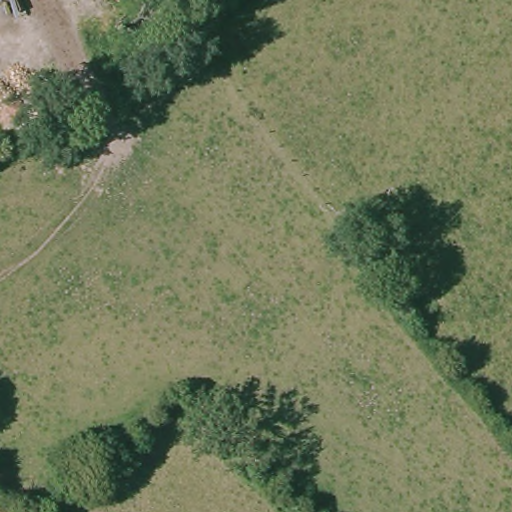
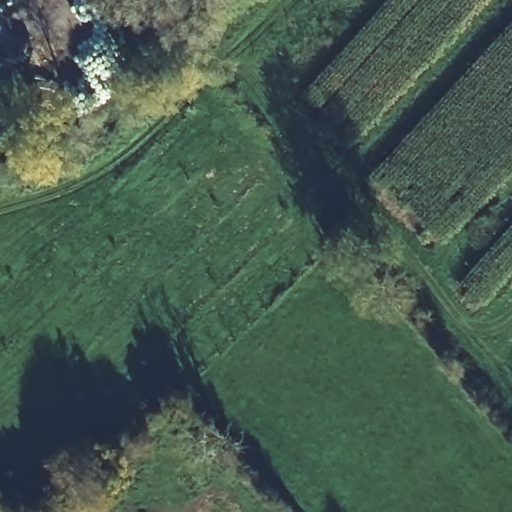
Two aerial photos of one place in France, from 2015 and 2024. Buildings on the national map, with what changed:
unchanged [(8,0),(0,4),(0,0),(8,0)]

